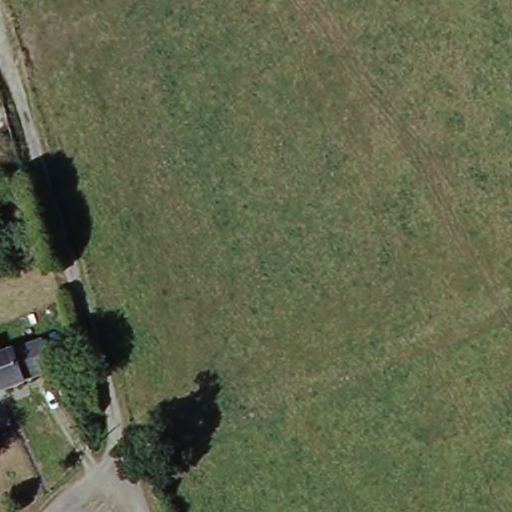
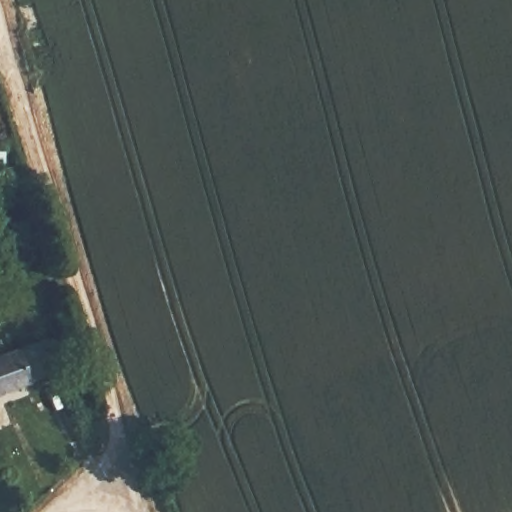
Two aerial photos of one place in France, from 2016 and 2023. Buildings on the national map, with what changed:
unchanged [(7,356),(46,342),(55,372),(33,380),(28,386),(0,395),(0,340),(2,340),(7,356)]

